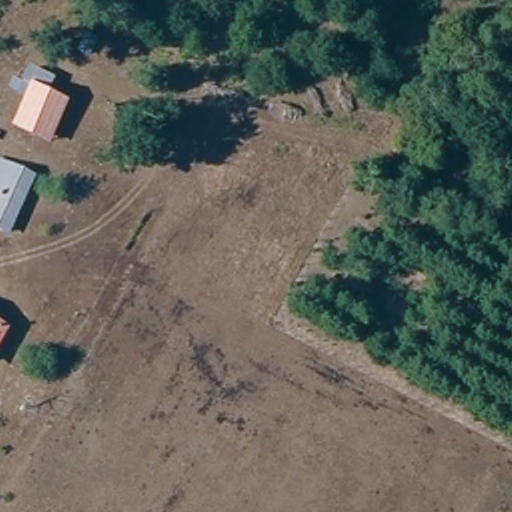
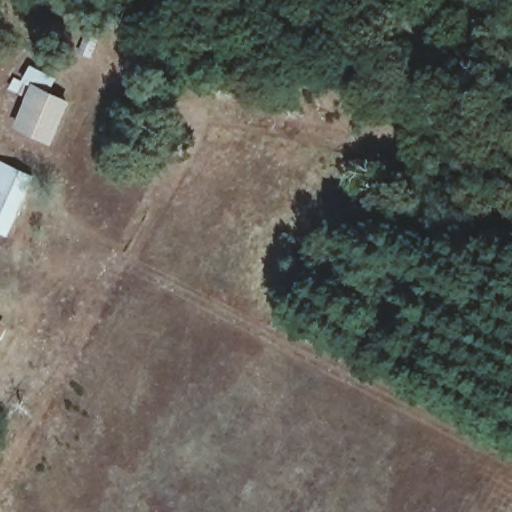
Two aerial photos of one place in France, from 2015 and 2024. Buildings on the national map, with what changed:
unchanged [(40,89),(70,103),(51,144),(21,131),(40,89)]
unchanged [(0,227),(0,160),(35,176),(10,231),(0,227)]

